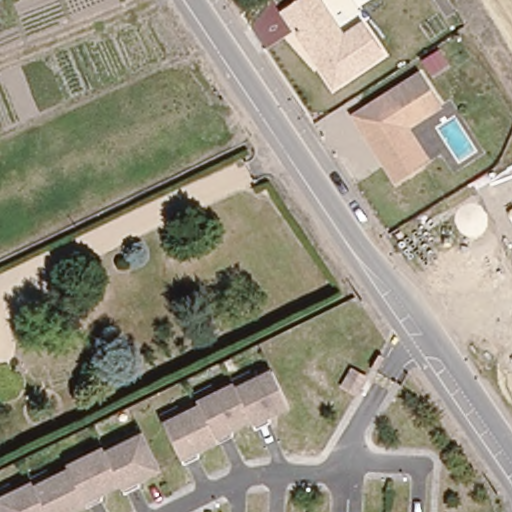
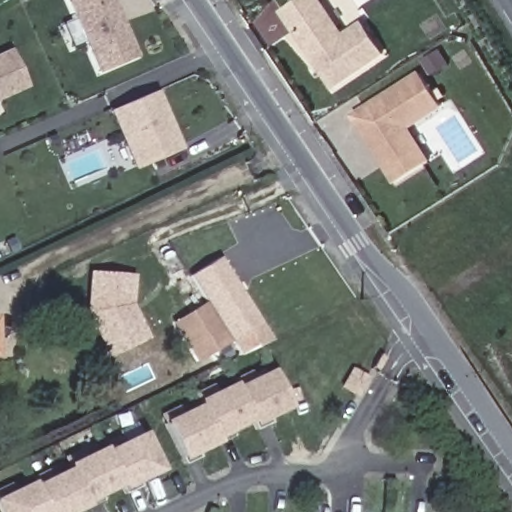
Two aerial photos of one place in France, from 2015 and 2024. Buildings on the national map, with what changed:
new [(100,70),(69,0),(113,0),(137,55),(100,70)]
unchanged [(316,0),(344,40),(362,27),(384,59),(334,92),(282,17),(307,0),(316,0)]
new [(10,49),(25,84),(0,95),(0,53),(10,49)]
unchanged [(421,74),(442,106),(407,128),(430,162),(397,182),(355,116),(421,74)]
new [(155,91),(180,147),(136,166),(112,110),(155,91)]
new [(5,110),(0,113),(0,101),(5,110)]
new [(220,258),(262,324),(233,342),(194,361),(171,321),(204,297),(191,276),(220,258)]
new [(130,275),(128,301),(122,305),(127,314),(132,312),(143,337),(106,355),(86,311),(89,272),(130,275)]
unchanged [(270,415),(273,422),(258,429),(253,418),(232,428),(236,435),(220,442),(219,439),(198,449),(202,455),(186,463),(167,422),(163,415),(199,398),(198,395),(234,377),(236,381),(272,365),(275,371),(291,405),(270,415)]
unchanged [(354,369),(368,377),(359,393),(345,386),(354,369)]
unchanged [(33,480),(68,463),(66,459),(103,441),(105,445),(140,427),(144,434),(160,468),(139,479),(143,485),(127,493),(122,482),(101,492),(105,500),(89,507),(88,503),(70,512),(4,512),(0,505),(0,492),(32,476),(33,480)]

